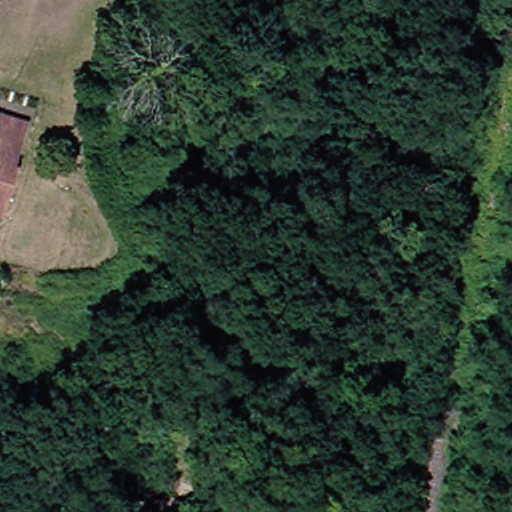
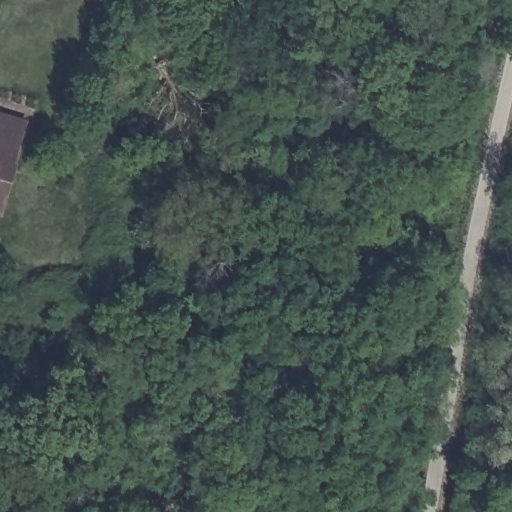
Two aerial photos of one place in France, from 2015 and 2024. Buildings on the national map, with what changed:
unchanged [(6,160),(0,181),(0,115),(18,121),(6,160)]

